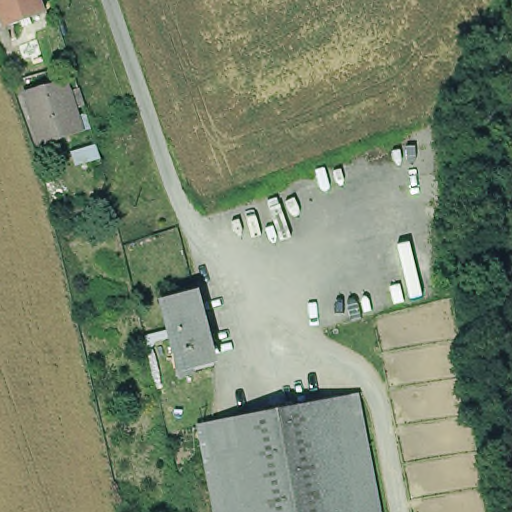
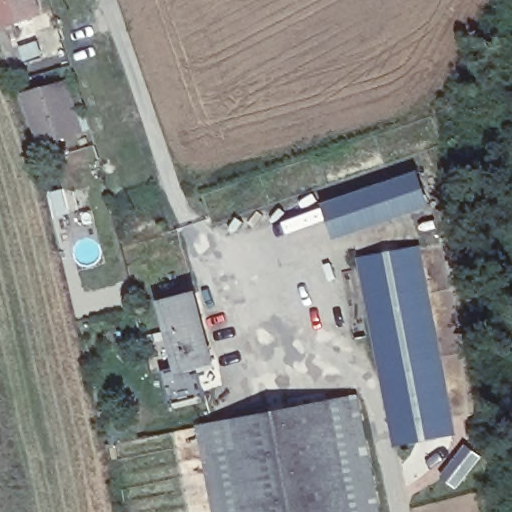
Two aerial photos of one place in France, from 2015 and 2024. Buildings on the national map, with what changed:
unchanged [(28,22),(6,29),(0,11),(0,0),(20,0),(28,22)]
unchanged [(45,16),(28,22),(20,0),(41,0),(45,16)]
unchanged [(26,97),(49,89),(67,84),(79,121),(60,125),(64,137),(41,144),(26,97)]
new [(411,169),(423,206),(329,237),(316,200),(411,169)]
new [(456,434),(389,446),(354,257),(421,243),(456,434)]
unchanged [(189,291),(206,358),(189,363),(189,367),(176,371),(158,299),(189,291)]
unchanged [(385,512),(220,512),(204,433),(364,402),(385,512)]

